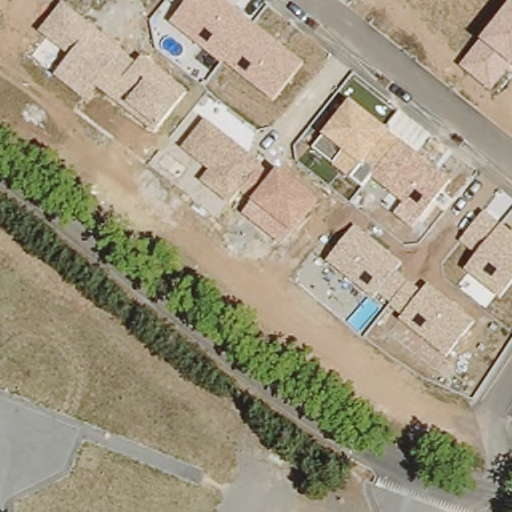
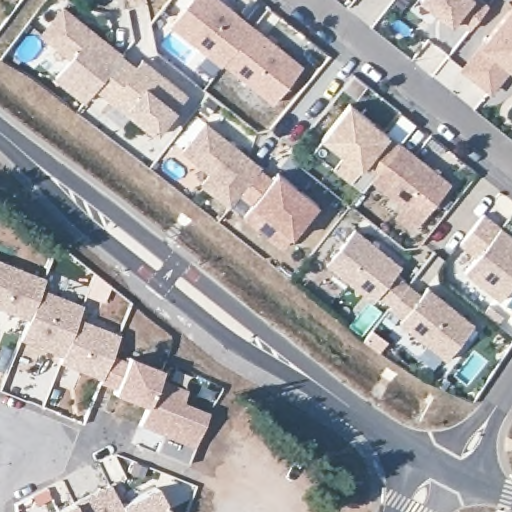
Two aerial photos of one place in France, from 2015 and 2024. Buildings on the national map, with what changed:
unchanged [(223,61),(220,65),(171,23),(190,0),(224,0),(303,63),(273,102),(223,61)]
new [(488,6),(478,19),(470,30),(456,19),(451,25),(419,0),(480,0),(488,6)]
unchanged [(512,2),(512,65),(490,91),(460,67),(480,42),(512,2)]
unchanged [(71,58),(40,33),(63,3),(137,64),(143,57),(187,92),(176,106),(158,128),(154,134),(96,88),(85,102),(56,78),(71,58)]
unchanged [(403,203),(370,178),(363,188),(314,149),(323,136),(350,101),(389,133),(403,143),(450,181),(421,218),(412,229),(394,215),(403,203)]
unchanged [(253,202),(239,191),(229,205),(201,182),(210,172),(183,150),(205,121),(261,164),(258,167),(272,177),(278,170),(320,202),(293,235),(283,248),(243,216),(253,202)]
unchanged [(477,255),(460,241),(484,212),(501,226),(512,235),(512,283),(500,299),(465,270),(477,255)]
unchanged [(400,321),(403,317),(377,295),(373,300),(327,262),(356,227),(402,264),(395,272),(422,293),(430,285),(475,322),(446,358),(400,321)]
new [(156,452),(164,436),(139,425),(145,408),(112,394),(115,389),(97,383),(98,379),(60,361),(62,357),(20,338),(28,320),(0,310),(0,260),(45,278),(41,286),(42,286),(83,304),(77,316),(120,334),(113,351),(128,356),(162,370),(160,375),(188,389),(183,401),(207,411),(186,464),(156,452)]
new [(110,485),(120,504),(156,487),(167,512),(53,512),(73,502),(110,485)]

